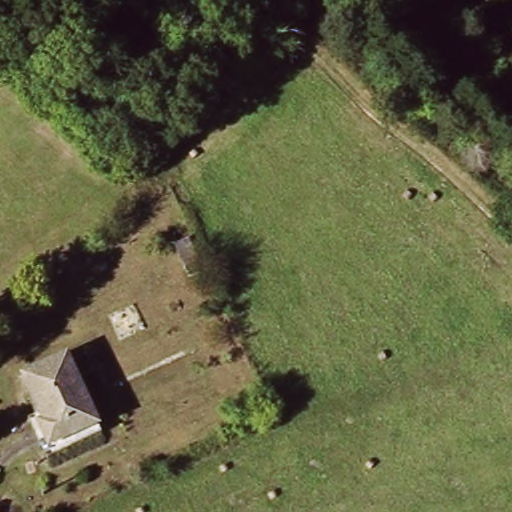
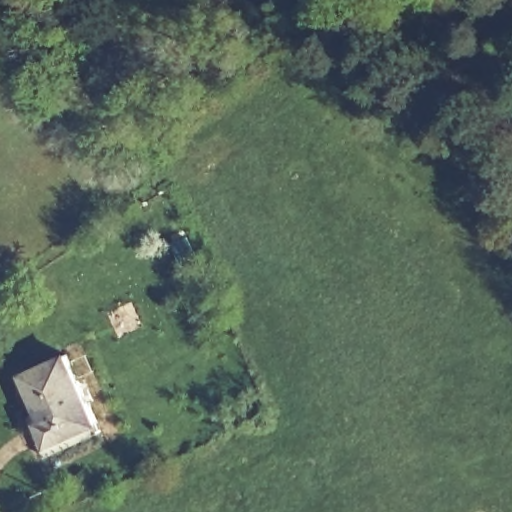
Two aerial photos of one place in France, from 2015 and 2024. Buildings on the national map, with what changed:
unchanged [(200,261),(188,269),(178,248),(192,241),(200,261)]
unchanged [(55,403),(41,372),(80,354),(116,428),(64,454),(43,409),(55,403)]

